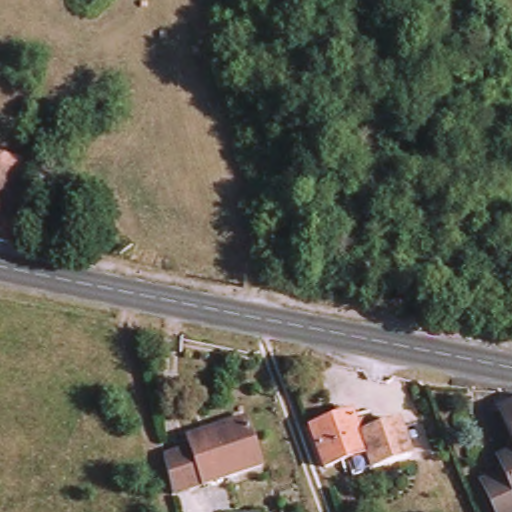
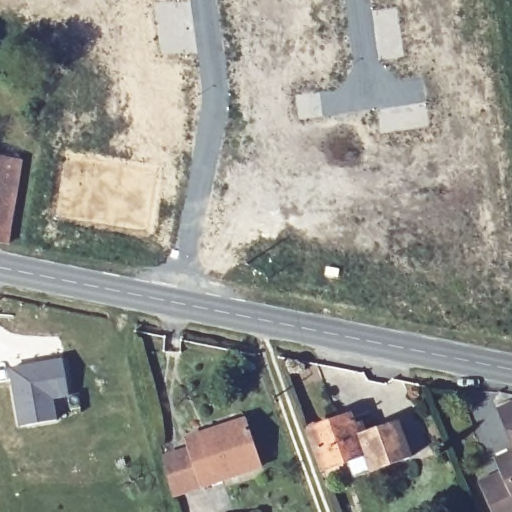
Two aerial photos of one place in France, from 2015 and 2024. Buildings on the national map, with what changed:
unchanged [(3,161),(0,180),(0,160),(3,161)]
unchanged [(0,244),(0,180),(3,161),(26,165),(11,246),(0,244)]
new [(63,357),(70,396),(55,399),(58,420),(20,426),(9,367),(63,357)]
unchanged [(512,400),(512,436),(499,405),(512,400)]
unchanged [(329,469),(313,428),(352,412),(357,425),(365,422),(370,433),(386,426),(399,421),(413,455),(400,460),(375,470),(368,453),(329,469)]
unchanged [(180,492),(166,452),(192,444),(190,436),(217,427),(248,417),(264,465),(230,476),(201,485),(180,492)]
unchanged [(479,475),(502,465),(496,451),(512,445),(512,508),(501,512),(494,512),(479,475)]

